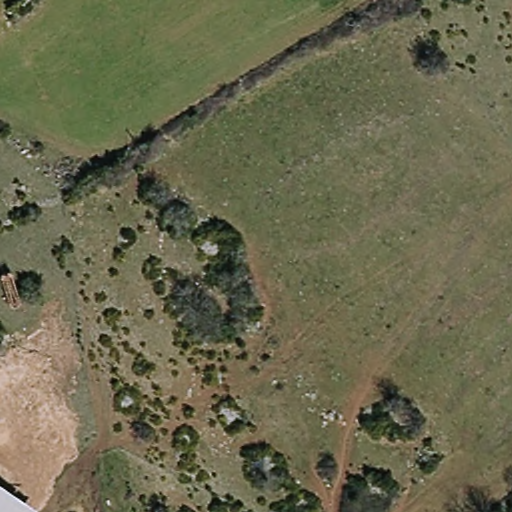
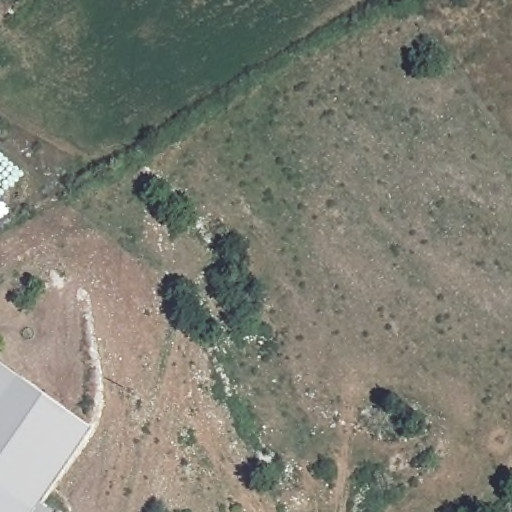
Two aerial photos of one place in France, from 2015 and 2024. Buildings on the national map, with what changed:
new [(0,484),(0,363),(23,378),(96,430),(43,505),(38,511),(0,484)]
unchanged [(0,512),(0,484),(38,511),(38,512),(0,512)]
new [(52,512),(38,512),(38,511),(43,505),(52,512)]

